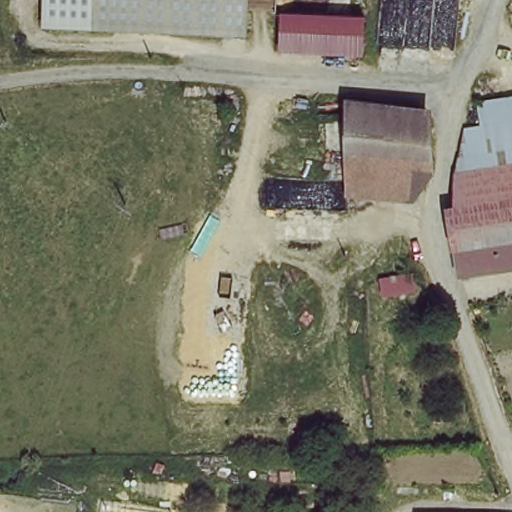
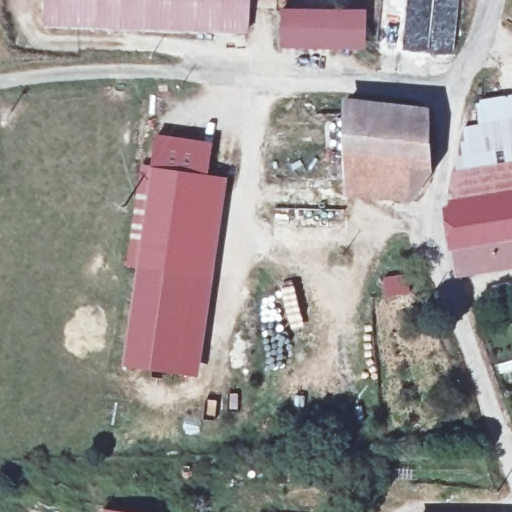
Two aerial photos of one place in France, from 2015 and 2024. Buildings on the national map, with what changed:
unchanged [(49,0),(248,0),(247,39),(48,30),(49,0)]
new [(459,0),(455,55),(398,51),(400,0),(459,0)]
new [(365,15),(362,55),(278,51),(279,13),(365,15)]
unchanged [(460,181),(464,164),(474,163),(482,110),(512,105),(512,202),(452,213),(459,183),(460,181)]
unchanged [(347,169),(347,111),(364,114),(387,119),(409,123),(414,126),(418,131),(421,139),(421,148),(420,173),(420,182),(388,176),(347,169)]
new [(212,144),(208,174),(228,177),(200,377),(124,365),(151,170),(156,134),(212,144)]
unchanged [(388,176),(388,202),(347,205),(347,169),(388,176)]
unchanged [(465,277),(458,249),(465,248),(452,213),(512,202),(512,264),(465,277)]
unchanged [(415,275),(418,293),(385,297),(383,278),(415,275)]
new [(104,509),(129,512),(104,512),(104,509)]

